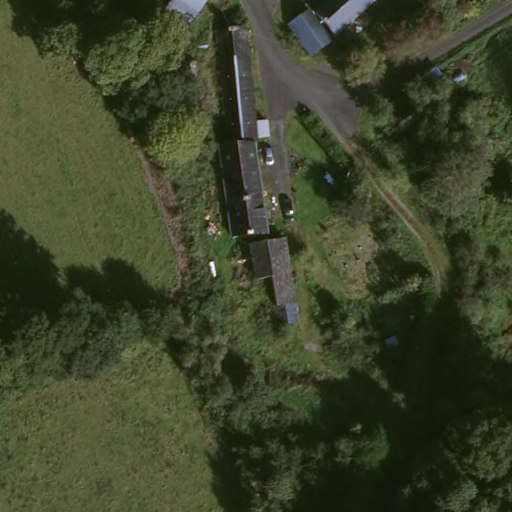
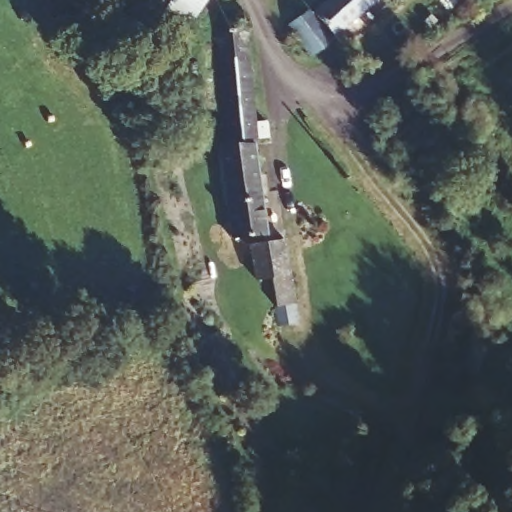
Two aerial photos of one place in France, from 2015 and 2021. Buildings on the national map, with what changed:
unchanged [(161,4),(163,0),(205,0),(191,20),(161,4)]
unchanged [(326,0),(373,0),(332,34),(313,10),(326,0)]
unchanged [(288,27),(308,12),(331,41),(311,56),(288,27)]
unchanged [(229,143),(219,32),(249,30),(259,140),(229,143)]
unchanged [(259,145),(267,235),(233,237),(224,152),(224,147),(259,145)]
unchanged [(277,304),(271,277),(258,280),(251,245),(286,239),(294,273),(299,298),(277,304)]

